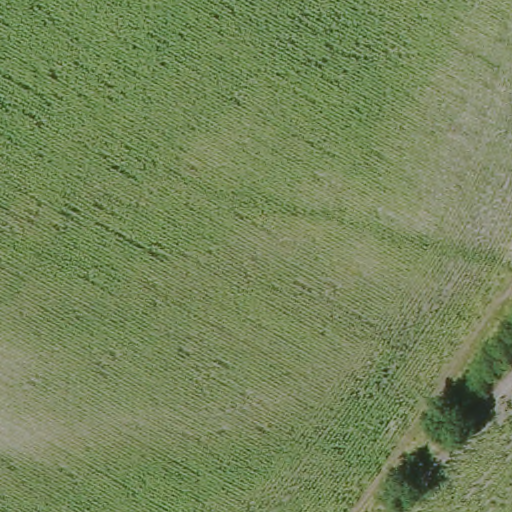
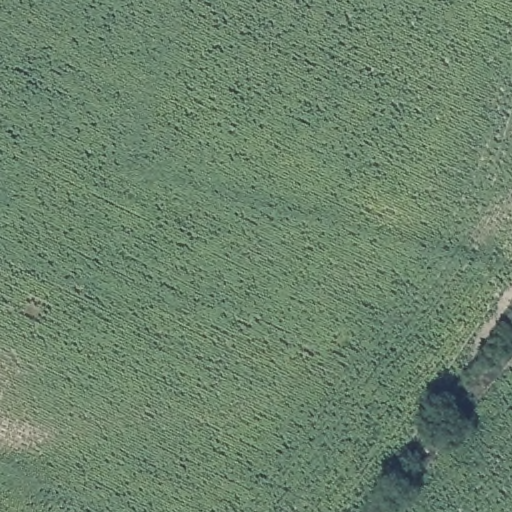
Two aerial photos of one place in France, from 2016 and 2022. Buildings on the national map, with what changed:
[]

